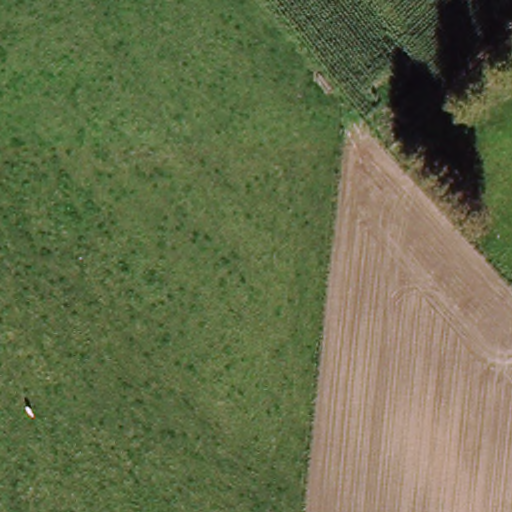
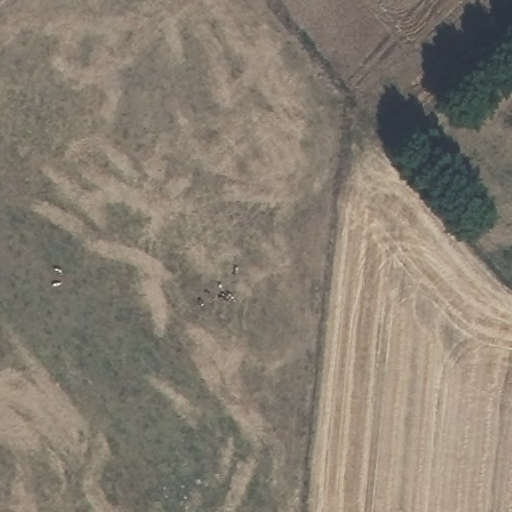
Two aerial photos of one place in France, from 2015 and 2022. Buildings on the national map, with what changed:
[]

